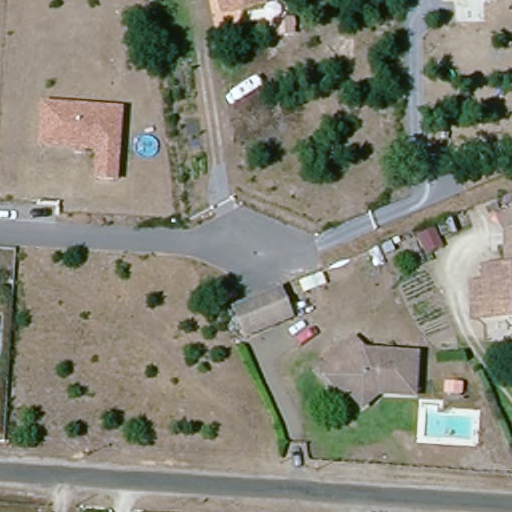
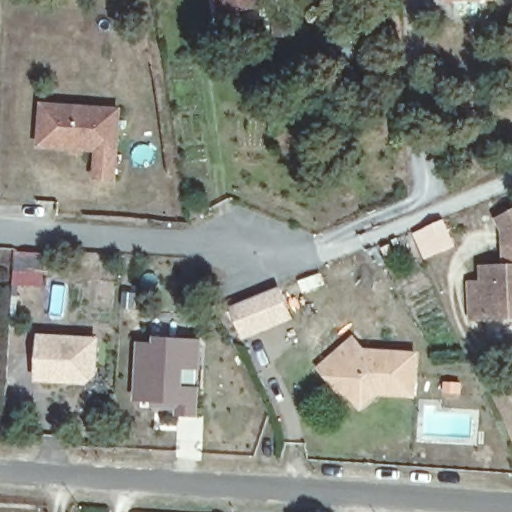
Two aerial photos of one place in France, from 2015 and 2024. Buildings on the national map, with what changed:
unchanged [(268,5),(222,15),(218,0),(267,0),(268,5)]
unchanged [(442,0),(497,0),(497,1),(442,1),(442,0)]
unchanged [(120,112),(116,183),(94,183),(96,151),(43,146),(45,109),(120,112)]
unchanged [(470,310),(470,287),(483,287),(482,270),(505,268),(505,232),(497,217),(512,208),(512,318),(485,320),(471,321),(470,310)]
unchanged [(284,285),(294,317),(243,333),(234,304),(284,285)]
new [(35,381),(38,334),(100,339),(97,378),(86,385),(35,381)]
new [(153,402),(134,400),(137,342),(154,343),(154,337),(202,339),(198,416),(177,415),(177,409),(152,407),(153,402)]
unchanged [(374,390),(358,398),(340,366),(332,371),(322,355),(359,337),(365,348),(417,350),(415,392),(374,390)]

